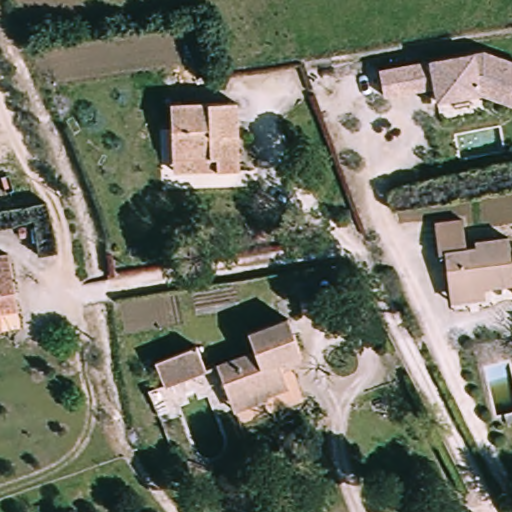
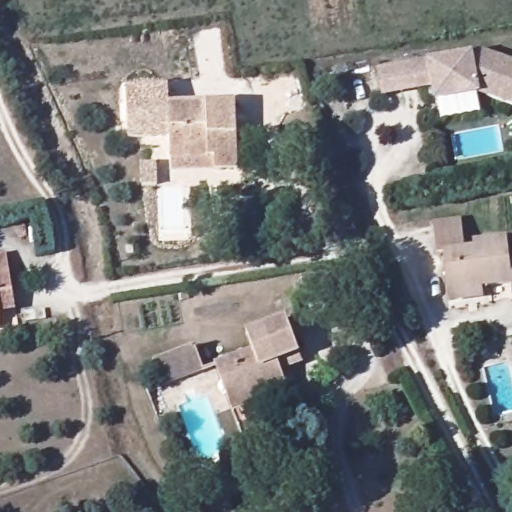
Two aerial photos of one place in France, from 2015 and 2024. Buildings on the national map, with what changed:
unchanged [(481,93),(438,99),(436,84),(417,87),(385,92),(381,67),(413,63),(486,52),(512,61),(512,103),(481,93)]
new [(169,102),(172,136),(130,141),(127,88),(167,84),(169,102)]
unchanged [(174,157),(169,102),(233,99),(238,167),(217,170),(175,175),(174,157)]
unchanged [(446,287),(445,252),(438,252),(438,216),(466,216),(467,250),(477,250),(477,240),(508,240),(508,264),(512,265),(512,286),(490,286),(489,300),(446,299),(446,287)]
unchanged [(7,255),(14,292),(18,308),(0,312),(0,256),(7,255)]
unchanged [(0,335),(0,317),(1,322),(4,334),(0,335)]
unchanged [(289,384),(271,392),(267,384),(231,398),(215,360),(250,346),(245,330),(274,317),(288,351),(278,357),(289,384)]
unchanged [(152,360),(194,347),(206,373),(163,388),(152,360)]
unchanged [(306,396),(242,426),(231,398),(267,384),(271,392),(289,384),(278,357),(288,351),(306,396)]

